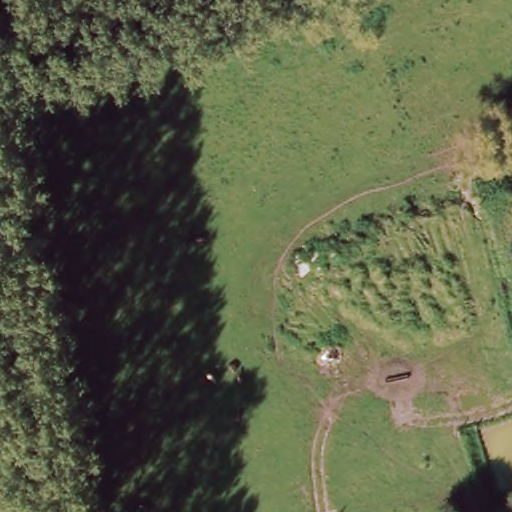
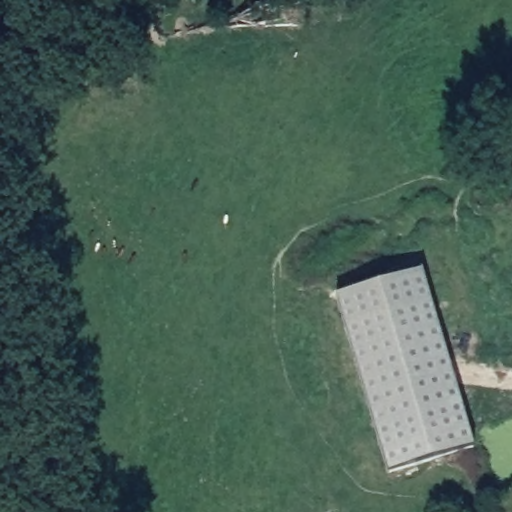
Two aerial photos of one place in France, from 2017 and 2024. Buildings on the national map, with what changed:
new [(424,272),(477,446),(390,471),(340,300),(424,272)]

